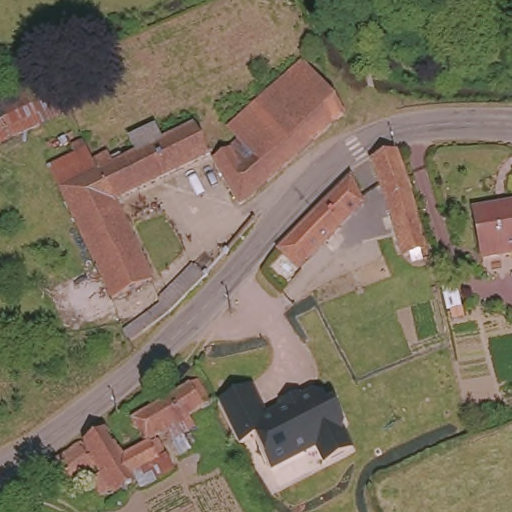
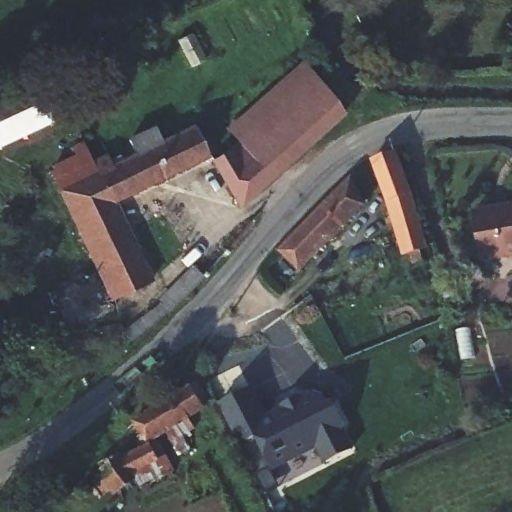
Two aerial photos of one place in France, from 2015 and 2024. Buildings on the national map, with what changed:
unchanged [(303,67),(326,96),(344,118),(317,143),(242,209),(214,166),(241,149),(230,134),(303,67)]
unchanged [(64,112),(52,117),(0,143),(0,102),(47,79),(64,112)]
unchanged [(100,180),(94,167),(107,160),(110,167),(121,161),(125,168),(137,162),(130,145),(155,133),(163,149),(197,132),(210,160),(113,207),(152,286),(112,305),(62,198),(100,180)]
unchanged [(75,162),(71,153),(84,147),(94,167),(100,180),(62,198),(51,175),(75,162)]
unchanged [(372,161),(397,151),(412,193),(427,248),(404,255),(388,201),(372,161)]
unchanged [(279,259),(285,251),(282,247),(351,177),(363,200),(300,263),(292,271),(279,259)]
unchanged [(471,217),(470,212),(503,207),(512,205),(512,254),(478,260),(471,217)]
unchanged [(131,330),(169,302),(166,299),(200,266),(212,276),(199,290),(180,310),(137,342),(129,349),(120,337),(130,331),(131,330)]
unchanged [(181,453),(173,442),(167,430),(147,442),(135,422),(198,382),(211,403),(190,417),(195,427),(185,435),(192,447),(181,453)]
unchanged [(315,449),(271,471),(255,436),(240,446),(217,403),(252,384),(266,412),(282,406),(280,400),(320,387),(325,395),(332,392),(352,447),(323,465),(315,449)]
unchanged [(142,488),(137,482),(118,493),(115,488),(104,496),(95,482),(104,476),(98,467),(74,482),(71,478),(62,485),(49,467),(57,461),(77,448),(104,431),(123,462),(147,447),(159,443),(167,458),(174,470),(142,488)]

